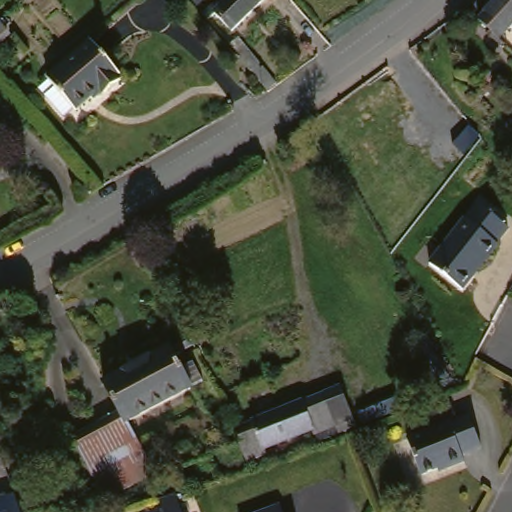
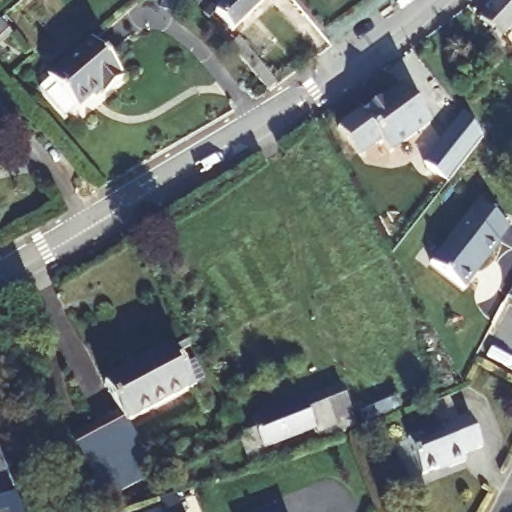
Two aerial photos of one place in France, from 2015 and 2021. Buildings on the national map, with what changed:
unchanged [(203,0),(263,0),(239,27),(203,0)]
unchanged [(505,30),(485,10),(494,0),(512,0),(512,22),(505,30)]
unchanged [(0,24),(4,21),(12,32),(0,42),(0,24)]
unchanged [(123,71),(126,76),(109,91),(106,86),(81,107),(80,105),(70,112),(45,84),(55,76),(53,74),(97,36),(126,69),(123,71)]
new [(238,37),(277,84),(268,90),(229,45),(238,37)]
new [(363,110),(365,114),(403,88),(429,127),(389,155),(380,142),(358,157),(337,127),(363,110)]
unchanged [(476,202),(506,226),(495,235),(502,243),(472,292),(429,263),(476,202)]
unchanged [(106,497),(98,482),(73,437),(120,412),(105,382),(171,347),(181,367),(194,361),(204,381),(192,388),(128,422),(146,456),(155,472),(106,497)]
unchanged [(346,382),(362,422),(325,437),(322,428),(340,421),(328,388),(346,382)]
unchanged [(328,388),(340,421),(322,428),(320,429),(318,425),(270,443),(272,449),(253,456),(240,422),(328,388)]
unchanged [(369,420),(363,406),(400,391),(406,404),(369,420)]
unchanged [(483,447),(463,455),(465,461),(449,467),(448,465),(422,475),(408,439),(470,415),(483,447)]
unchanged [(159,501),(176,493),(183,512),(164,512),(159,501)]
unchanged [(21,512),(0,512),(0,499),(15,495),(21,512)]
unchanged [(280,500),(284,512),(249,512),(280,500)]

